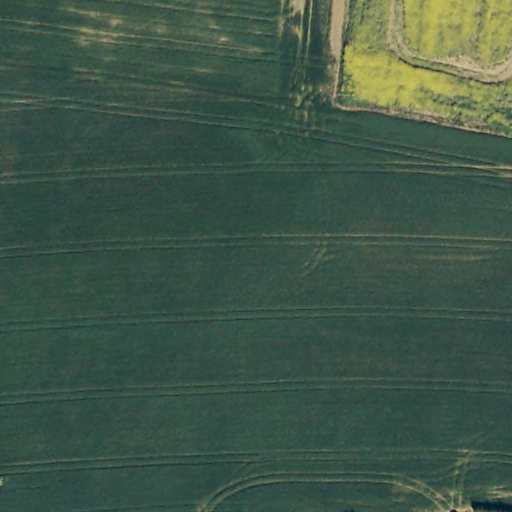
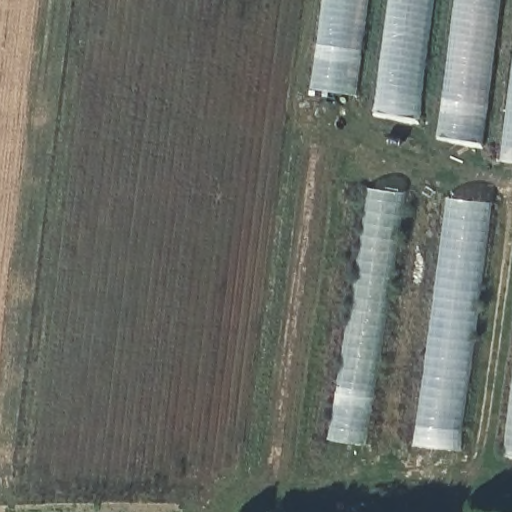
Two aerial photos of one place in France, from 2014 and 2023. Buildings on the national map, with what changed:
new [(358,95),(311,88),(322,0),(371,0),(358,95)]
new [(421,118),(372,110),(386,0),(436,0),(421,118)]
new [(490,144),(438,138),(456,0),(507,0),(490,144)]
new [(500,163),(512,64),(512,165),(500,163)]
new [(370,444),(329,438),(367,186),(409,192),(370,444)]
new [(494,202),(462,450),(416,445),(447,196),(494,202)]
new [(512,395),(512,458),(505,457),(512,395)]

